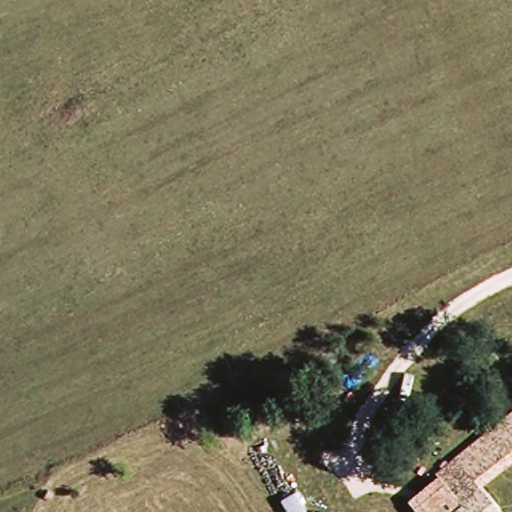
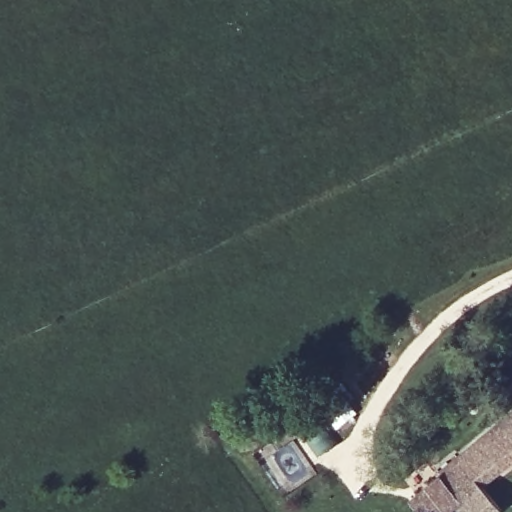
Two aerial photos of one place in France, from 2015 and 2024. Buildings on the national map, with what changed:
unchanged [(410,503),(435,476),(512,414),(512,465),(482,491),(500,511),(498,512),(417,512),(410,503)]

